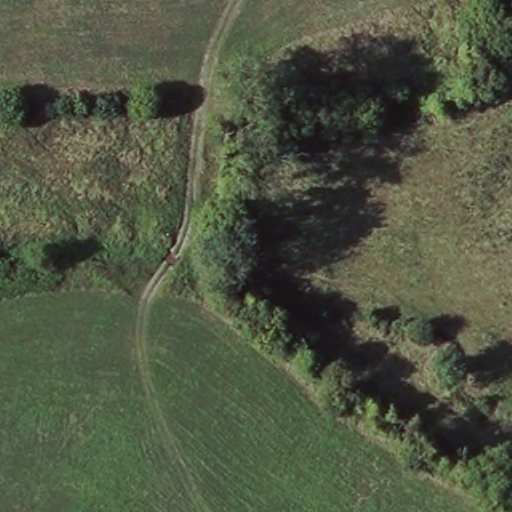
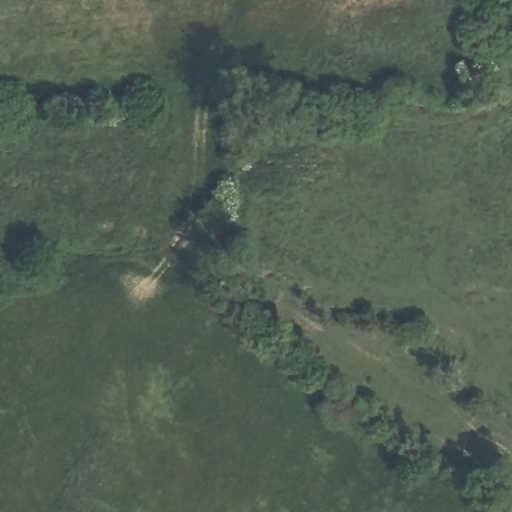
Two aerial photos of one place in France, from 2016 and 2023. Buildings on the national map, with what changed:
[]

